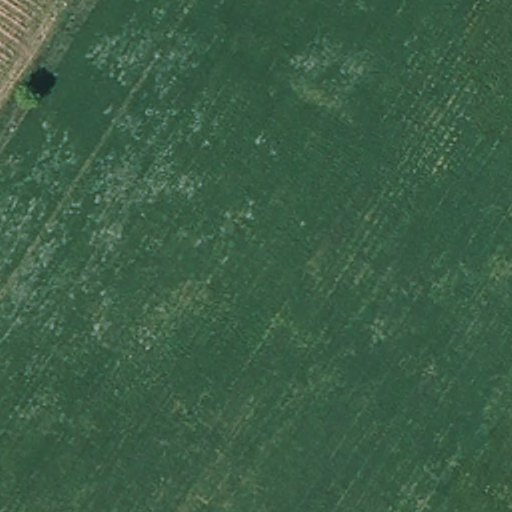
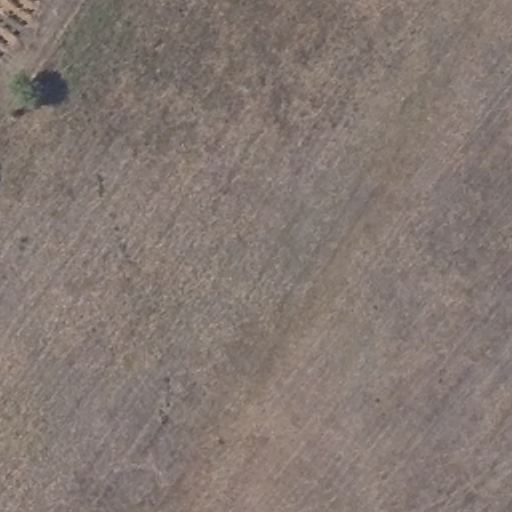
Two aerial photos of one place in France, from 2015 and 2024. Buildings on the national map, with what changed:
[]

